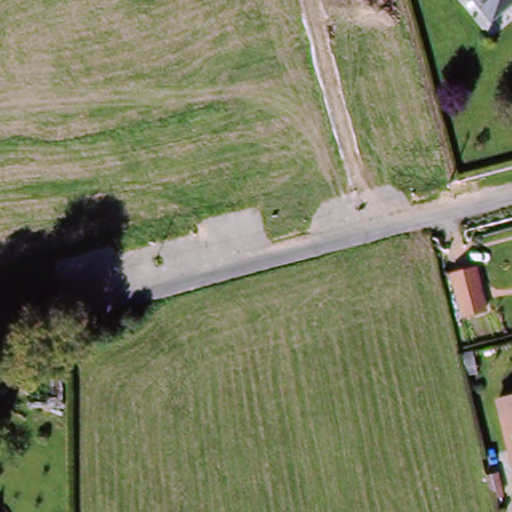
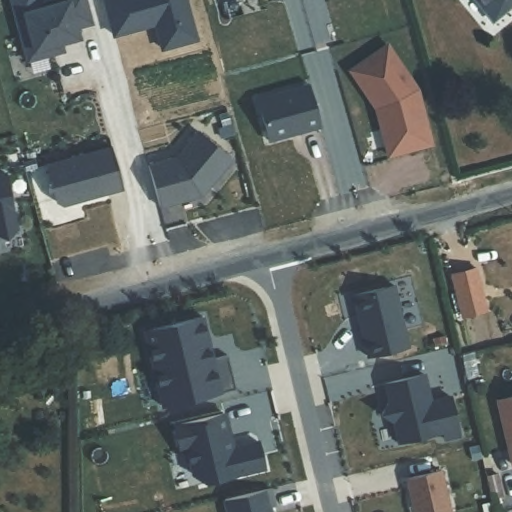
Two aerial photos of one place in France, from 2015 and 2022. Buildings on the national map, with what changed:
new [(27,61),(18,30),(27,28),(23,12),(66,0),(87,0),(93,23),(76,28),(78,38),(60,43),(63,52),(54,54),(27,61)]
unchanged [(475,0),(500,0),(484,12),(475,0)]
new [(388,152),(376,108),(351,70),(388,45),(418,90),(432,145),(415,149),(389,156),(388,152)]
new [(309,85),(321,127),(269,141),(258,100),(309,85)]
new [(159,208),(148,166),(177,158),(199,132),(232,159),(209,187),(201,196),(159,208)]
new [(111,148),(123,189),(63,206),(57,202),(46,166),(111,148)]
new [(17,229),(7,238),(0,236),(0,175),(6,174),(17,229)]
unchanged [(462,272),(479,268),(489,311),(472,315),(462,272)]
new [(397,288),(411,350),(371,359),(356,298),(397,288)]
new [(203,316),(213,358),(226,355),(234,388),(161,408),(143,331),(203,316)]
new [(425,373),(433,399),(451,395),(462,437),(444,441),(442,432),(397,444),(392,424),(381,415),(388,401),(382,384),(425,373)]
unchanged [(510,467),(494,402),(512,398),(512,467),(510,467)]
new [(232,440),(234,449),(259,444),(266,470),(208,484),(195,476),(189,449),(182,451),(176,426),(226,415),(232,440)]
new [(443,473),(452,512),(416,512),(409,481),(443,473)]
new [(271,490),(275,507),(271,508),(271,512),(228,512),(226,501),(271,490)]

